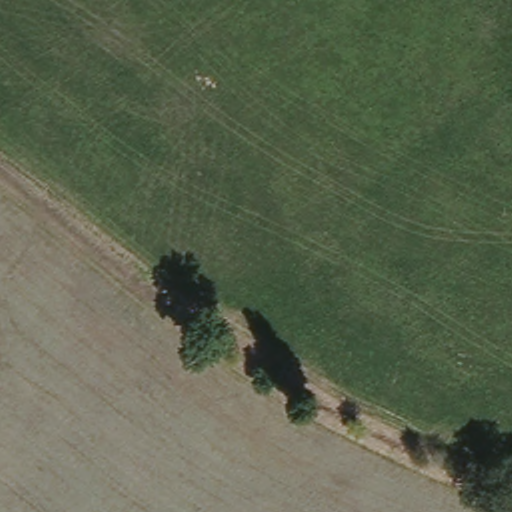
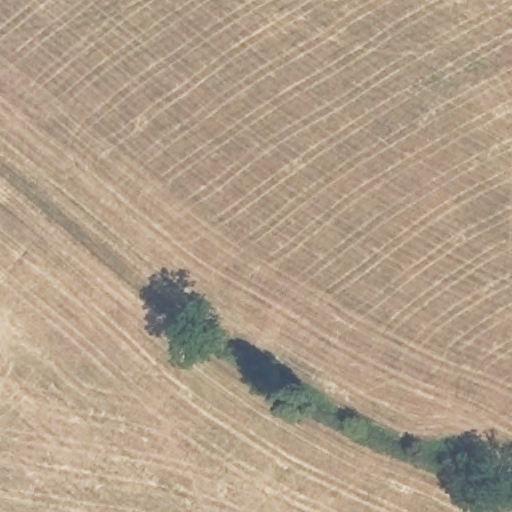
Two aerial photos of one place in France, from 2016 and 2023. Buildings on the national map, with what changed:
[]

